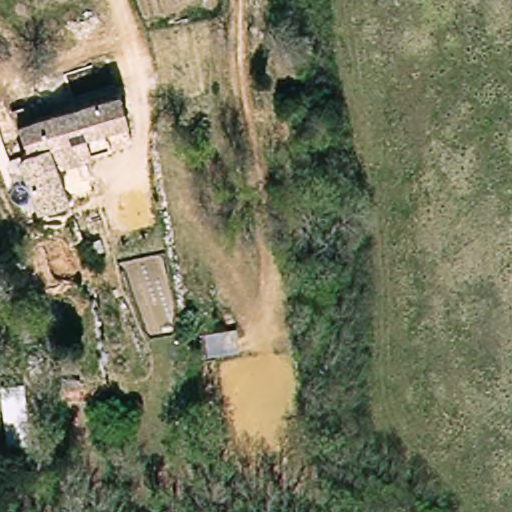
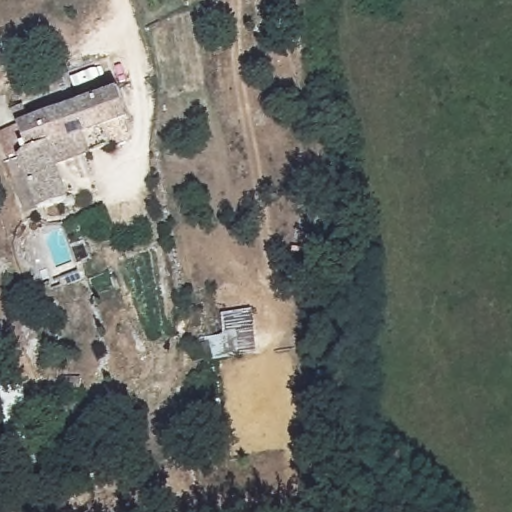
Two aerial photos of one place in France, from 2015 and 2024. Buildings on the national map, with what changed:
unchanged [(28,196),(14,145),(18,144),(11,116),(112,90),(127,140),(102,149),(98,141),(50,156),(59,187),(28,196)]

